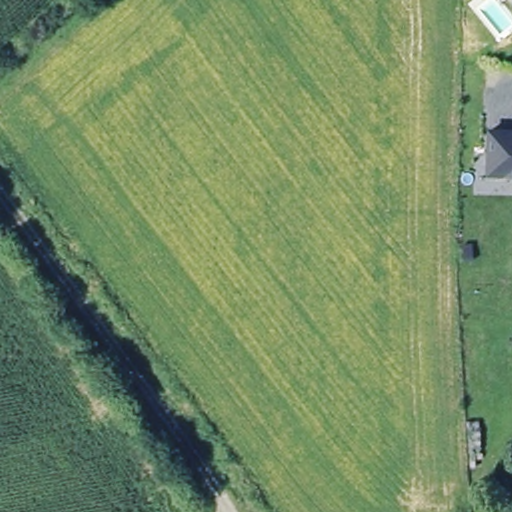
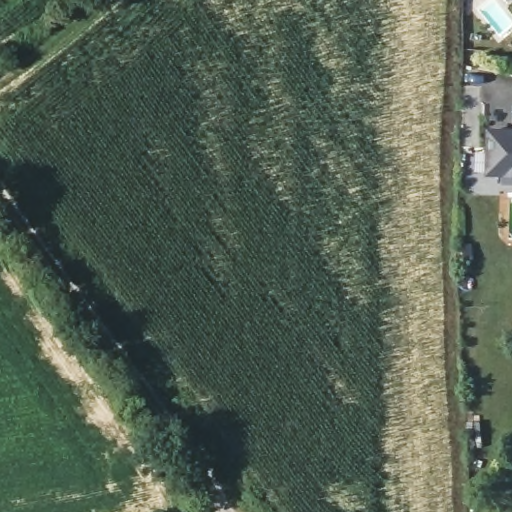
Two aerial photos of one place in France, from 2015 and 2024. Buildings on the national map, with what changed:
unchanged [(512,174),(486,173),(488,129),(512,130),(512,174)]

